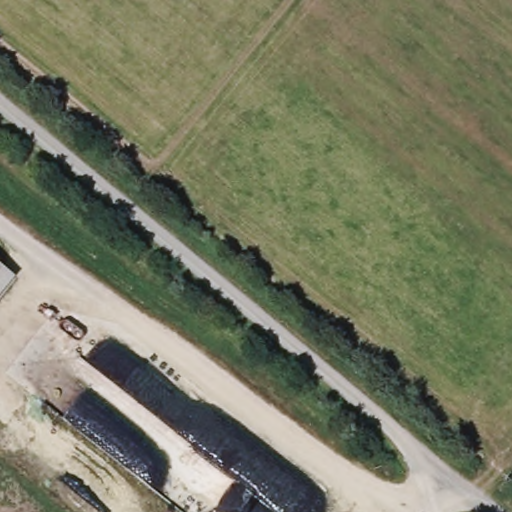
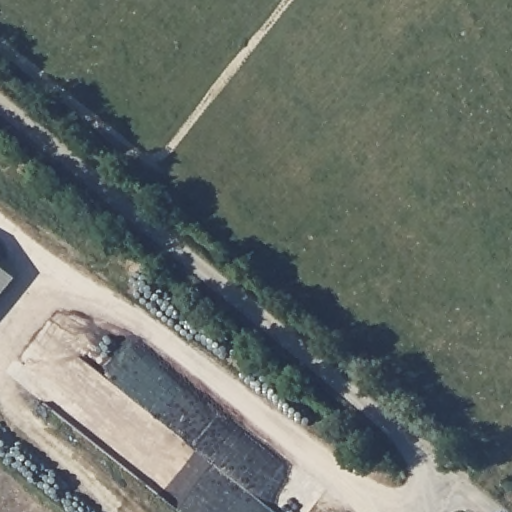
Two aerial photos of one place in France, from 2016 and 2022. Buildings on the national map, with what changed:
unchanged [(0,299),(0,267),(16,280),(0,299)]

